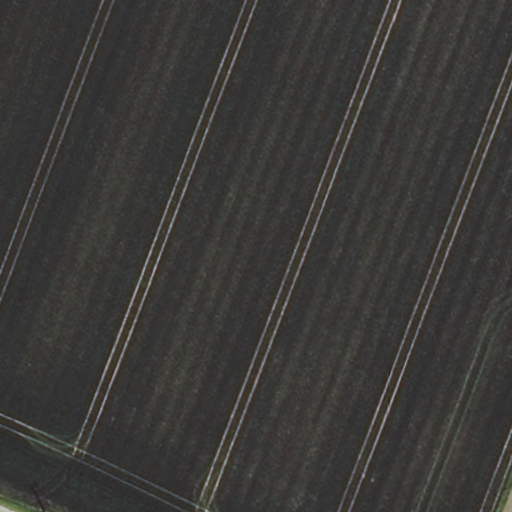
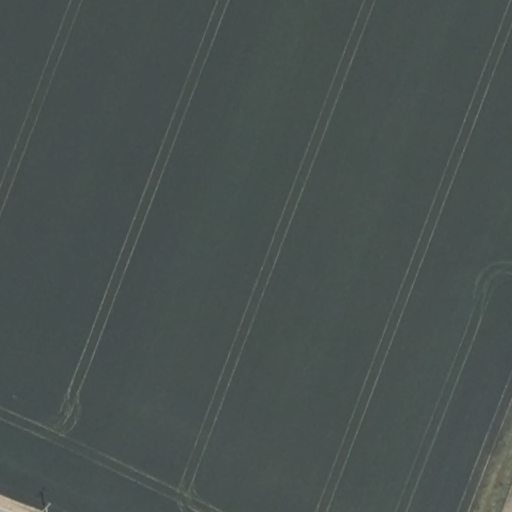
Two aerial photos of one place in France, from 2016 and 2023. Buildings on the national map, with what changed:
[]

